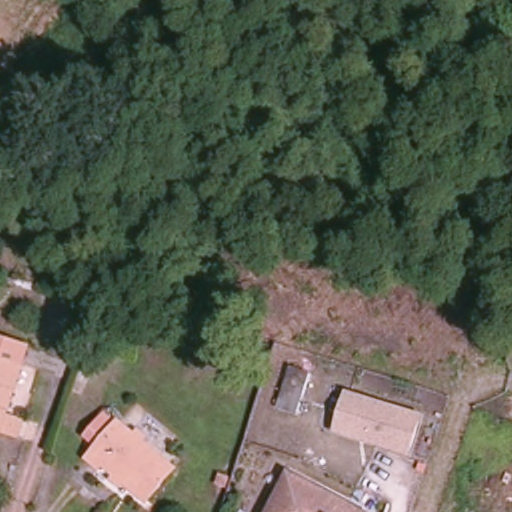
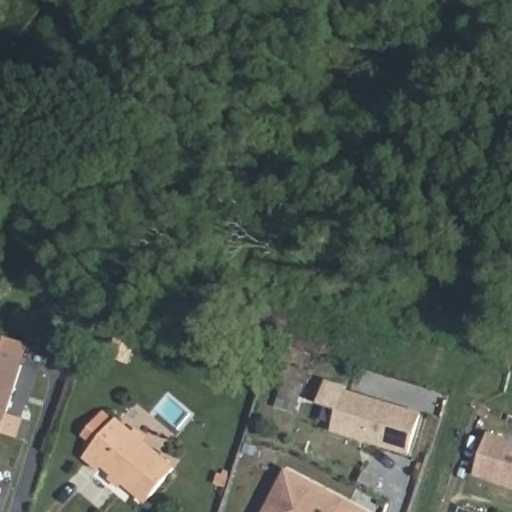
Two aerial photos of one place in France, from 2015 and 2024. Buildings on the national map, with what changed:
unchanged [(8,342),(2,361),(22,367),(6,415),(25,421),(19,439),(1,433),(0,433),(0,339),(8,342)]
unchanged [(300,416),(276,409),(286,373),(308,379),(300,416)]
unchanged [(413,454),(335,432),(347,390),(425,412),(413,454)]
unchanged [(124,416),(180,463),(151,497),(96,450),(124,416)]
new [(488,433),(512,441),(512,489),(474,475),(488,433)]
unchanged [(358,512),(271,512),(290,476),(358,512)]

